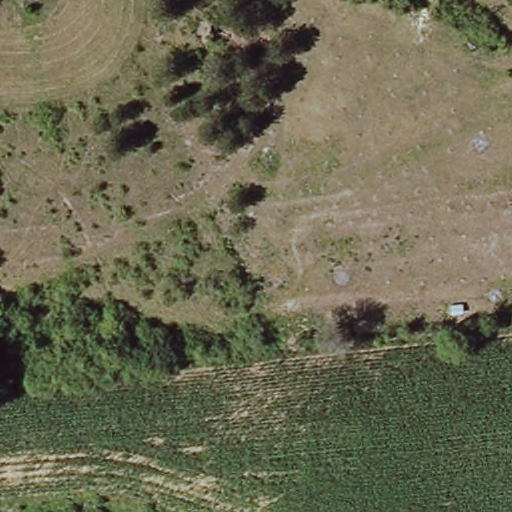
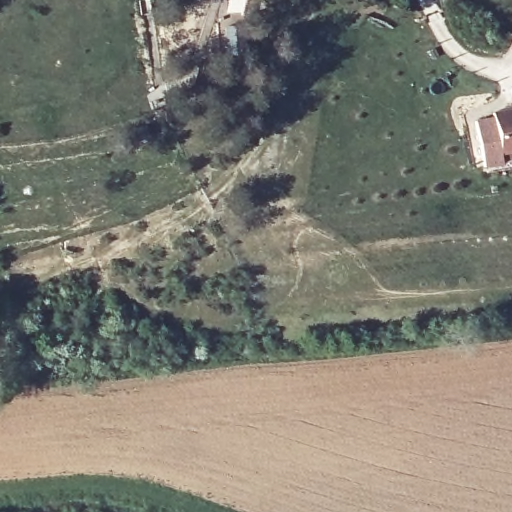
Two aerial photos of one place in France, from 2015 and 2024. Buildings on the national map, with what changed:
new [(492,119),(491,113),(512,110),(512,154),(501,156),(502,164),(482,169),(475,121),(492,119)]

